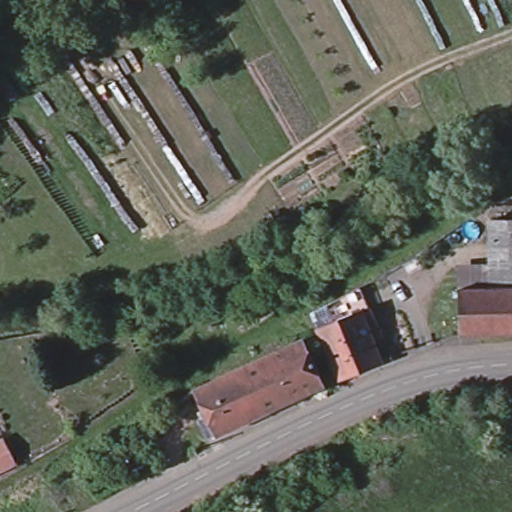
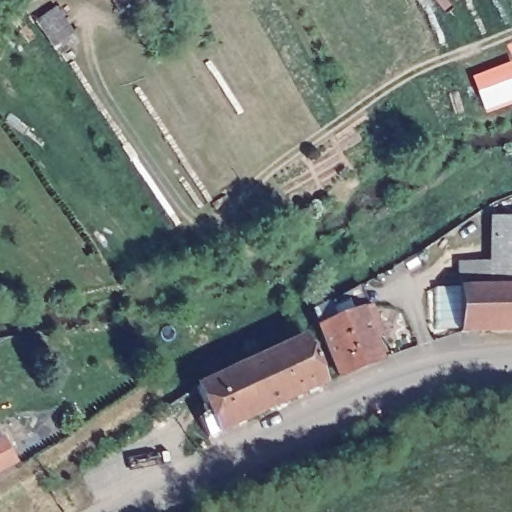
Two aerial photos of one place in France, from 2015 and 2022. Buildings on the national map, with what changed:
new [(485,114),(471,77),(512,61),(512,104),(485,114)]
unchanged [(493,288),(493,220),(512,218),(512,332),(460,335),(460,289),(493,288)]
unchanged [(345,384),(324,332),(318,318),(358,297),(366,313),(388,367),(345,384)]
unchanged [(326,386),(210,440),(199,420),(207,415),(195,390),(306,338),(326,386)]
unchanged [(0,472),(0,438),(4,436),(18,463),(0,472)]

